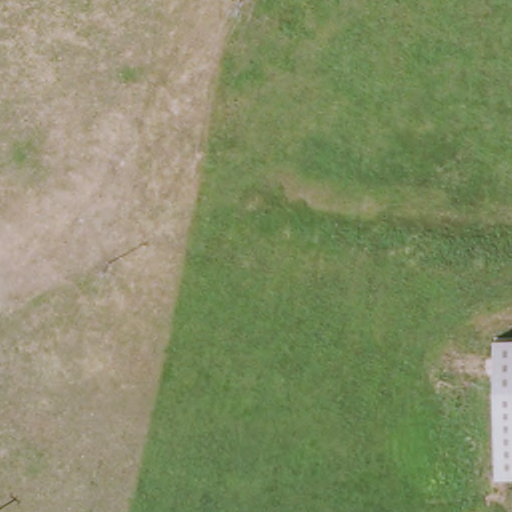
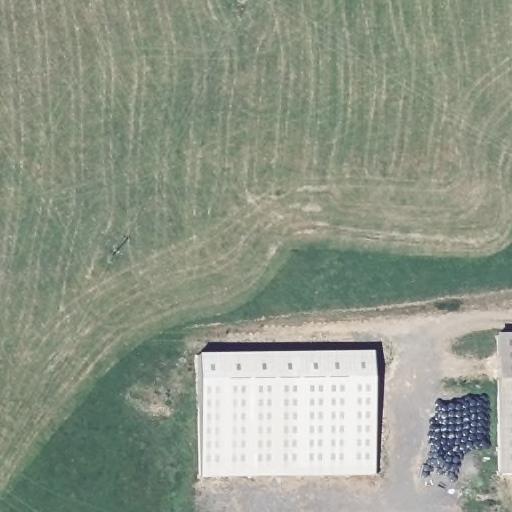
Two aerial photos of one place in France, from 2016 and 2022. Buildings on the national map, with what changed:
unchanged [(495,332),(512,332),(512,475),(497,475),(495,332)]
new [(198,479),(196,355),(370,352),(375,476),(198,479)]

